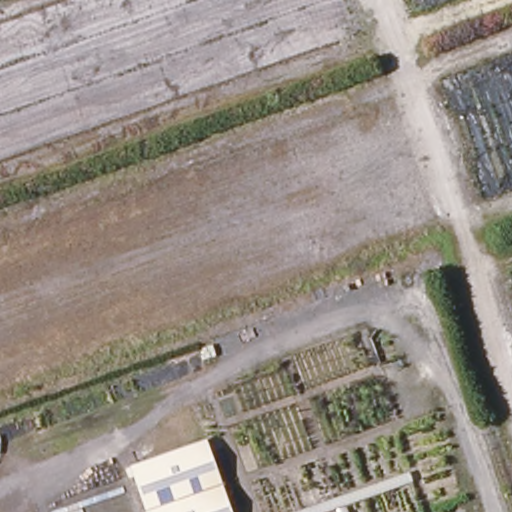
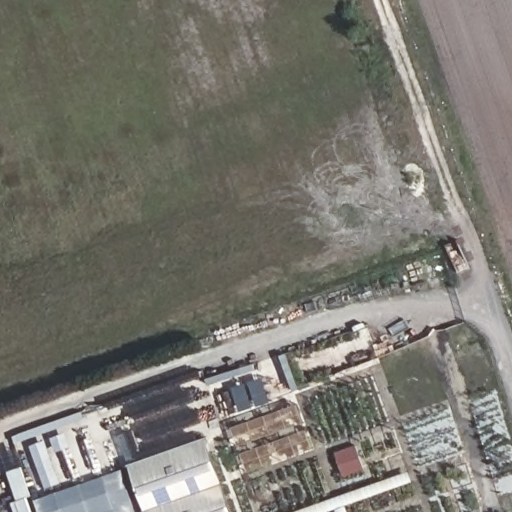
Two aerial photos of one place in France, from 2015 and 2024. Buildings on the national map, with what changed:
unchanged [(206,441),(231,512),(147,512),(132,466),(206,441)]
new [(40,512),(37,501),(122,470),(137,512),(40,512)]

